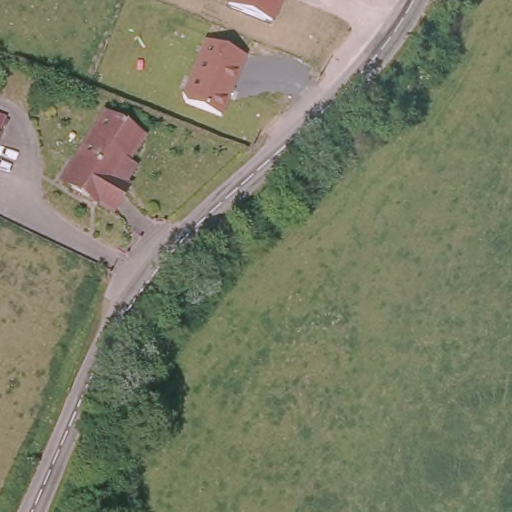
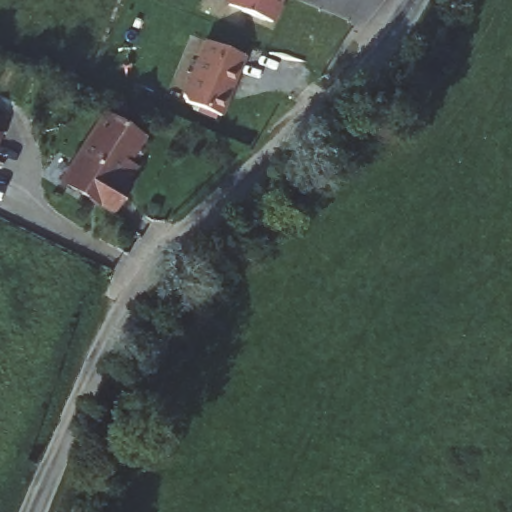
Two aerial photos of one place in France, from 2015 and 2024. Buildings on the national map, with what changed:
unchanged [(228,0),(284,0),(275,24),(226,6),(228,0)]
unchanged [(181,97),(202,40),(247,56),(223,117),(186,104),(181,97)]
unchanged [(62,179),(106,112),(142,137),(115,176),(128,184),(109,212),(62,179)]
unchanged [(0,130),(0,116),(6,118),(0,130)]

